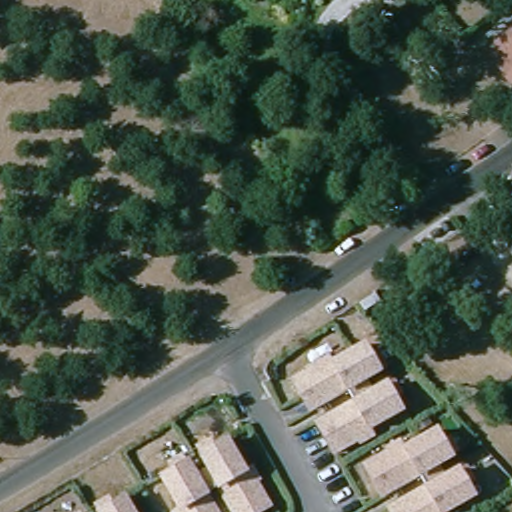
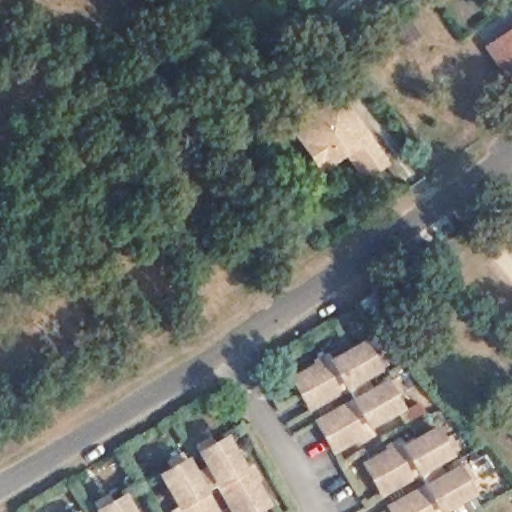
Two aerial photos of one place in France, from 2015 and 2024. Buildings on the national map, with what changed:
unchanged [(411,37),(396,47),(381,25),(397,15),(411,37)]
unchanged [(484,48),(512,29),(512,79),(508,82),(484,48)]
new [(364,180),(347,157),(321,173),(290,126),(343,92),(391,163),(364,180)]
unchanged [(360,438),(335,452),(318,422),(355,401),(348,389),(311,410),(294,379),(319,365),(317,362),(330,355),(334,362),(365,344),(372,356),(379,352),(387,367),(380,371),(365,379),(372,391),(387,383),(394,379),(403,394),(396,398),(402,410),(371,428),(375,434),(362,442),(360,438)]
unchanged [(390,508),(427,487),(420,474),(383,495),(366,465),(391,450),(389,448),(402,440),(406,447),(437,430),(444,442),(451,438),(459,452),(452,456),(437,465),(444,477),(459,469),(466,465),(475,480),(468,484),(474,496),(445,512),(392,512),(390,508)]
unchanged [(181,509),(162,476),(174,470),(170,463),(184,454),(189,461),(196,474),(208,466),(201,454),(197,447),(212,439),(216,446),(228,439),(246,471),(253,467),(260,479),(256,481),(270,505),(259,512),(234,512),(219,487),(207,494),(217,512),(175,512),(181,509)]
unchanged [(95,505),(109,497),(114,504),(126,497),(134,512),(98,512),(95,505)]

